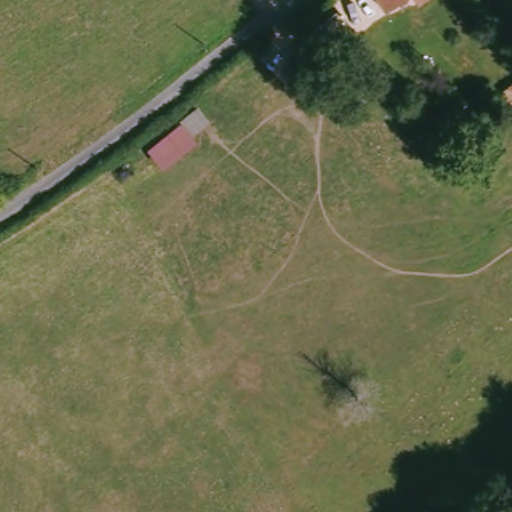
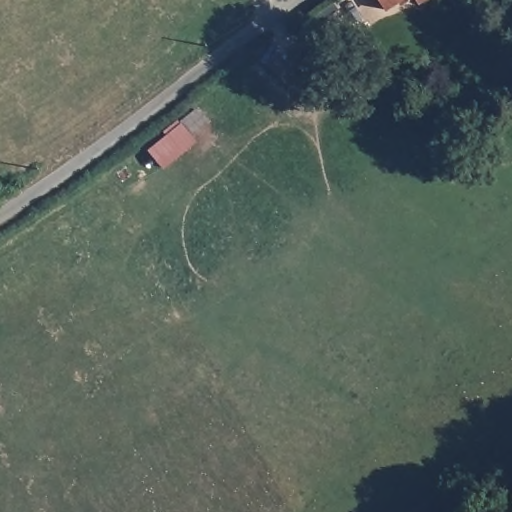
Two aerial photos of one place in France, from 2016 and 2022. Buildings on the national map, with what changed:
unchanged [(401,6),(396,0),(411,0),(401,6)]
unchanged [(512,96),(504,86),(512,80),(512,96)]
unchanged [(193,139),(197,146),(162,172),(147,152),(180,122),(196,110),(207,124),(193,139)]

